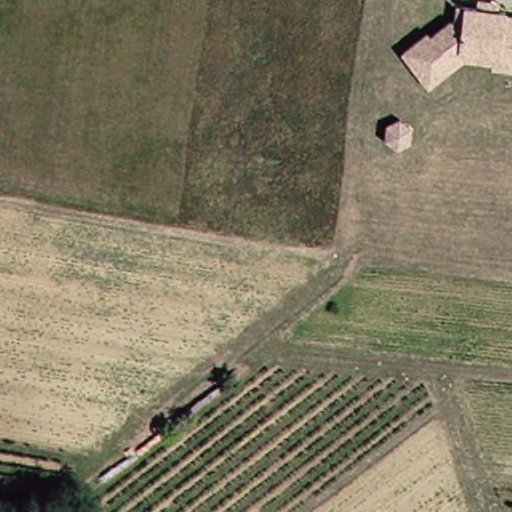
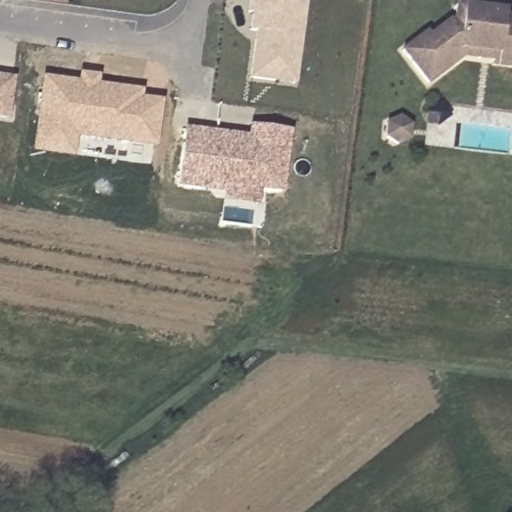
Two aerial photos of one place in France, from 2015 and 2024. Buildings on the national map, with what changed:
new [(248,81),(254,32),(248,31),(250,15),(245,13),(247,0),(292,0),(306,2),(293,85),(248,81)]
unchanged [(493,62),(462,57),(452,65),(427,85),(401,52),(426,32),(428,36),(450,21),(453,22),(454,16),(456,6),(476,9),(478,0),(498,2),(497,11),(504,12),(504,15),(512,16),(512,69),(492,66),(493,62)]
new [(97,85),(141,90),(140,98),(161,100),(154,147),(76,138),(73,158),(29,152),(40,76),(75,82),(76,73),(98,75),(97,85)]
new [(15,78),(8,121),(0,120),(0,76),(15,78)]
unchanged [(409,124),(408,140),(395,147),(381,139),(381,125),(397,115),(409,124)]
new [(282,195),(259,193),(258,206),(221,205),(223,194),(176,189),(183,127),(245,135),(247,125),(291,131),(282,195)]

